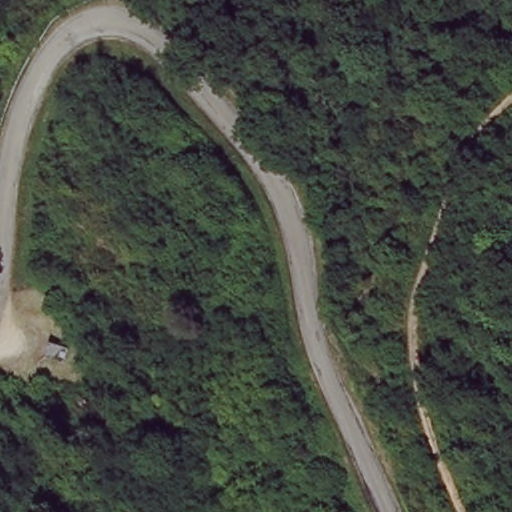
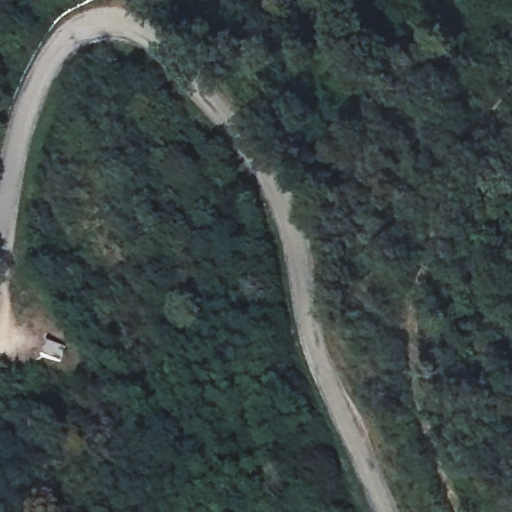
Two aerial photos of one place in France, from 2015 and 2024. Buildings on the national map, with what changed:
[]

